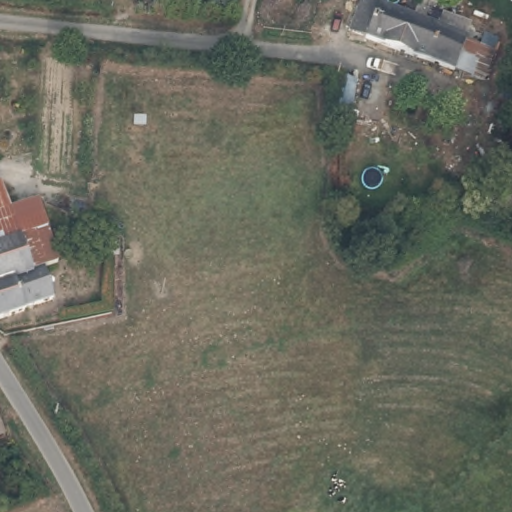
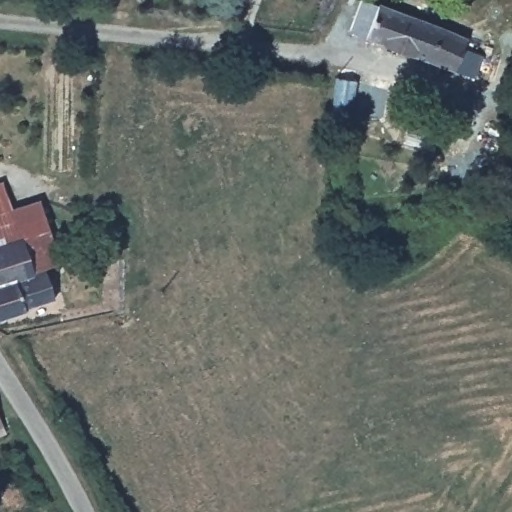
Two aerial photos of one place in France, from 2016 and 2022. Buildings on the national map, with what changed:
unchanged [(418,17),(462,34),(460,47),(477,56),(463,76),(363,37),(343,30),(355,0),(359,0),(371,5),(373,0),(377,0),(418,17)]
unchanged [(356,80),(351,119),(342,122),(331,116),(336,78),(356,80)]
unchanged [(48,267),(42,269),(31,272),(17,239),(0,244),(0,185),(1,185),(12,209),(27,206),(32,221),(48,267)]
unchanged [(50,303),(0,319),(0,244),(17,239),(31,272),(42,269),(54,291),(50,303)]
unchanged [(8,423),(0,427),(0,414),(8,423)]

